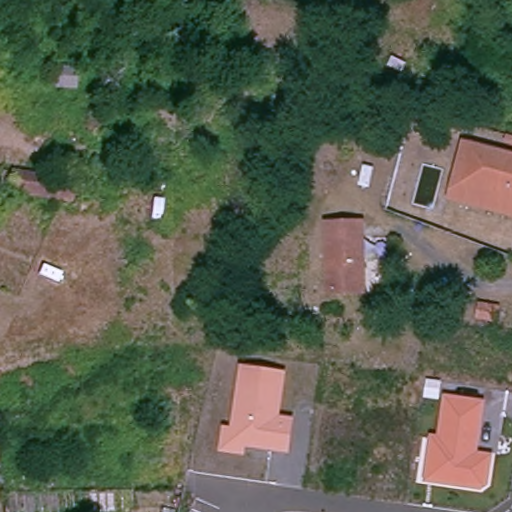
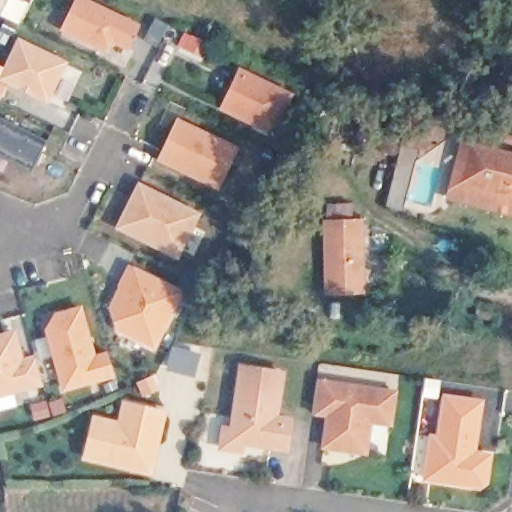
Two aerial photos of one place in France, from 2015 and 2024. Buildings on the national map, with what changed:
new [(18,25),(0,16),(0,0),(30,0),(18,25)]
new [(65,30),(79,0),(85,0),(139,25),(129,47),(121,62),(78,41),(81,37),(65,30)]
new [(184,30),(211,44),(202,60),(176,46),(184,30)]
new [(20,44),(65,65),(48,101),(3,80),(20,44)]
new [(240,71),(292,96),(277,126),(265,131),(222,110),(240,71)]
new [(33,172),(0,156),(0,119),(48,142),(33,172)]
new [(177,123),(235,149),(218,187),(160,161),(177,123)]
unchanged [(510,140),(510,137),(512,138),(512,141),(510,140)]
unchanged [(463,184),(512,196),(512,214),(452,199),(466,144),(473,145),(463,184)]
unchanged [(463,184),(473,145),(512,155),(512,196),(463,184)]
demolished [(66,199),(13,190),(16,172),(71,180),(66,199)]
new [(140,187),(198,216),(178,258),(120,229),(140,187)]
unchanged [(325,214),(370,215),(373,252),(366,251),(365,296),(325,293),(325,214)]
new [(126,289),(121,286),(131,269),(182,295),(155,348),(120,331),(114,313),(126,289)]
demolished [(261,283),(296,281),(297,329),(262,330),(261,283)]
new [(55,311),(83,305),(97,354),(110,350),(117,378),(63,392),(46,330),(55,311)]
new [(23,357),(34,353),(43,386),(0,397),(0,332),(16,328),(23,357)]
unchanged [(241,365),(285,371),(280,415),(296,418),(290,455),(247,447),(245,457),(218,451),(222,425),(232,426),(241,365)]
new [(318,384),(396,396),(391,428),(371,425),(366,456),(324,450),(329,418),(313,416),(318,384)]
unchanged [(493,455),(488,485),(479,491),(424,481),(430,433),(439,435),(444,394),(487,399),(479,453),(493,455)]
new [(62,397),(66,412),(34,420),(29,404),(62,397)]
unchanged [(150,475),(110,465),(111,461),(104,452),(88,448),(95,420),(120,426),(126,405),(165,415),(157,447),(154,461),(150,475)]

